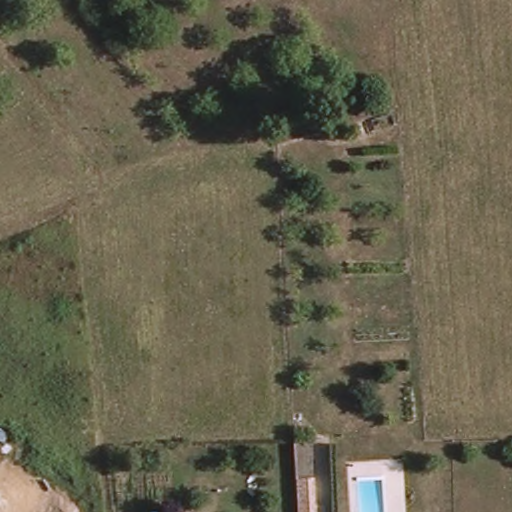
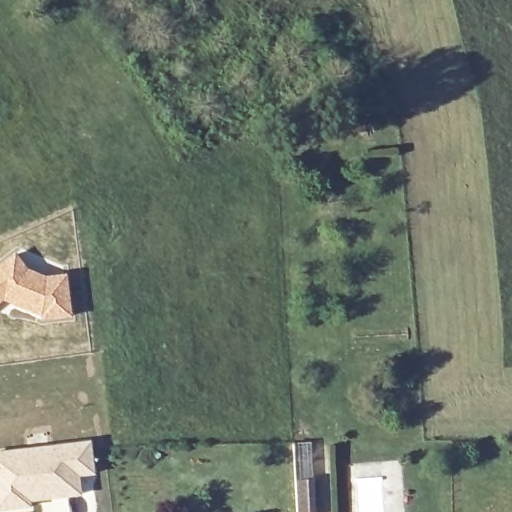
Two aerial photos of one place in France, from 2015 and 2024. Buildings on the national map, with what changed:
new [(14,249),(25,265),(30,269),(45,275),(66,273),(72,318),(45,322),(39,321),(3,300),(0,303),(0,260),(14,249)]
new [(90,439),(95,475),(80,478),(82,494),(31,501),(32,510),(14,512),(0,512),(0,449),(90,439)]
unchanged [(312,441),(313,479),(320,478),(323,512),(298,512),(293,442),(312,441)]

